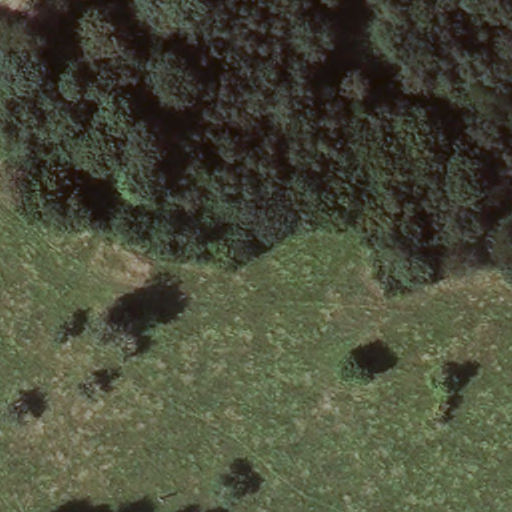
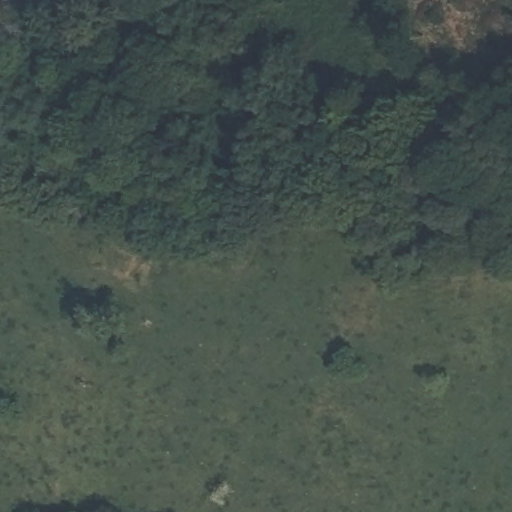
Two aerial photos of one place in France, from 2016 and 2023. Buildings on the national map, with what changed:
unchanged [(86,236),(90,218),(137,230),(131,249),(86,236)]

